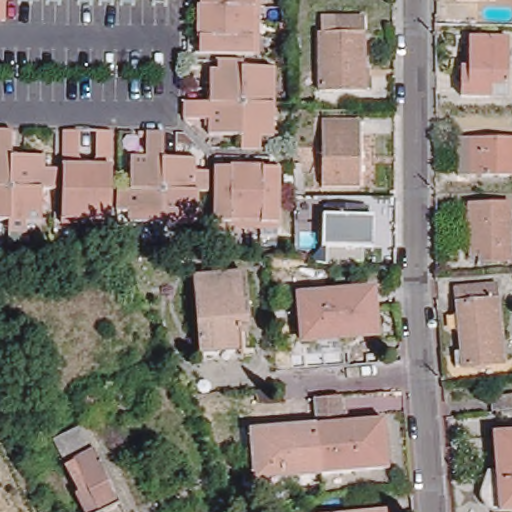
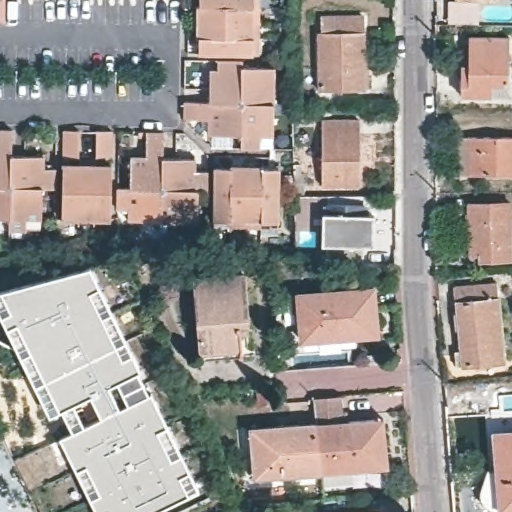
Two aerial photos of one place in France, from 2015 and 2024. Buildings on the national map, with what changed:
unchanged [(0,24),(0,0),(3,0),(3,24),(0,24)]
unchanged [(195,38),(193,22),(194,6),(195,6),(195,0),(255,0),(255,6),(255,22),(255,39),(255,54),(249,54),(195,53),(195,38)]
unchanged [(368,11),(368,84),(323,84),(323,27),(338,27),(338,12),(368,11)]
unchanged [(466,99),(466,49),(474,49),(474,41),(512,42),(512,100),(496,100),(466,99)]
unchanged [(235,62),(235,69),(234,103),(203,103),(204,71),(212,71),(212,62),(235,62)]
unchanged [(267,69),(266,103),(234,103),(235,69),(267,69)]
unchanged [(201,135),(201,119),(177,119),(178,103),(203,103),(234,103),(233,135),(201,135)]
unchanged [(266,138),(253,138),(253,149),(233,149),(233,135),(234,103),(266,103),(266,138)]
unchanged [(363,119),(365,185),(327,185),(325,120),(363,119)]
unchanged [(10,126),(10,152),(8,184),(0,184),(0,126),(10,126)]
unchanged [(77,127),(76,158),(62,158),(62,126),(77,127)]
unchanged [(160,127),(160,153),(160,185),(129,184),(130,152),(145,153),(145,127),(145,126),(160,127)]
unchanged [(110,159),(95,159),(95,127),(110,127),(110,159)]
unchanged [(512,170),(464,169),(463,131),(512,132),(512,170)]
unchanged [(41,153),(41,165),(54,165),(54,184),(40,184),(8,184),(10,152),(41,153)]
unchanged [(192,153),(192,165),(205,166),(205,185),(195,185),(160,185),(160,153),(192,153)]
unchanged [(245,223),(229,223),(212,223),(212,217),(212,164),(229,165),(245,164),(261,164),(261,165),(277,165),(277,217),(277,223),(260,223),(245,223)]
unchanged [(92,224),(77,224),(61,224),(61,218),(62,165),(78,166),(92,166),(110,167),(110,219),(110,224),(92,224)]
unchanged [(293,175),(305,174),(305,195),(295,195),(293,175)]
unchanged [(0,216),(0,184),(8,184),(8,216),(0,216)]
unchanged [(40,217),(25,217),(25,229),(8,229),(8,216),(8,184),(40,184),(40,217)]
unchanged [(129,184),(160,185),(160,217),(127,217),(127,205),(116,205),(117,184),(129,184)]
unchanged [(195,185),(195,218),(160,218),(160,217),(160,185),(195,185)]
demolished [(331,194),(367,194),(368,255),(332,254),(331,194)]
new [(327,213),(328,198),(369,200),(368,215),(374,215),(373,247),(322,246),(322,214),(327,213)]
unchanged [(512,254),(482,255),(481,251),(474,251),(472,200),(512,199),(512,254)]
new [(2,319),(0,313),(0,290),(88,268),(100,289),(133,358),(140,373),(60,413),(50,417),(7,329),(2,319)]
unchanged [(247,273),(252,324),(243,325),(245,349),(203,352),(196,277),(247,273)]
unchanged [(512,333),(512,362),(470,366),(464,287),(507,283),(512,333)]
unchanged [(376,288),(380,333),(307,339),(302,294),(376,288)]
new [(104,417),(93,396),(116,385),(126,406),(104,417)]
demolished [(100,390),(107,403),(90,411),(83,398),(100,390)]
unchanged [(390,461),(382,462),(319,468),(315,418),(313,394),(340,392),(342,408),(346,408),(347,415),(372,413),(385,411),(390,461)]
new [(90,499),(76,471),(60,438),(151,394),(167,426),(181,456),(189,472),(199,491),(190,495),(155,512),(97,512),(90,499)]
unchanged [(512,409),(492,411),(491,396),(512,394),(512,409)]
unchanged [(262,473),(257,423),(315,418),(319,468),(262,473)]
demolished [(82,421),(120,498),(97,509),(99,512),(86,512),(75,489),(80,486),(55,435),(82,421)]
unchanged [(512,510),(495,512),(495,509),(482,511),(477,510),(473,509),(470,506),(468,504),(466,500),(466,497),(465,493),(466,490),(467,488),(469,485),(471,484),(474,481),(477,480),(481,480),(477,431),(512,429),(512,510)]
unchanged [(393,508),(394,512),(354,512),(393,508)]

